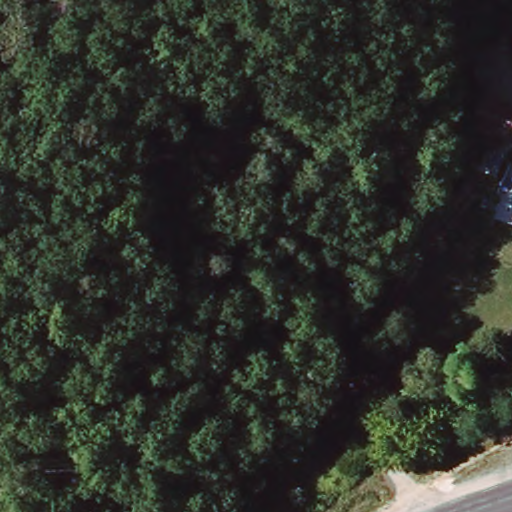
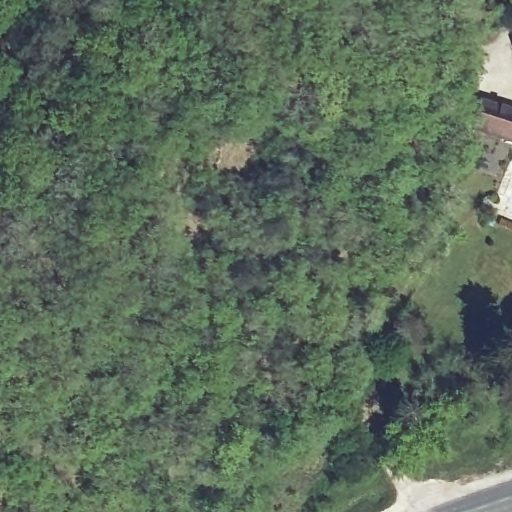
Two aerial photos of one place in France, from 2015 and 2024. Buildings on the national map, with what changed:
unchanged [(500,0),(512,0),(512,13),(501,16),(500,0)]
unchanged [(485,40),(487,67),(473,69),(465,69),(463,42),(481,40),(485,40)]
unchanged [(499,151),(490,147),(493,139),(476,131),(473,130),(484,104),(512,116),(512,148),(503,144),(499,151)]

